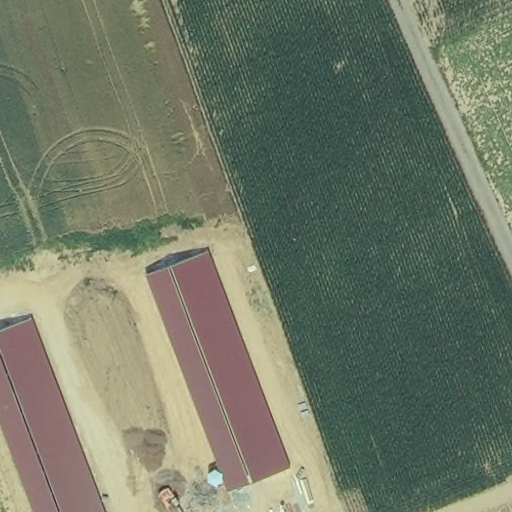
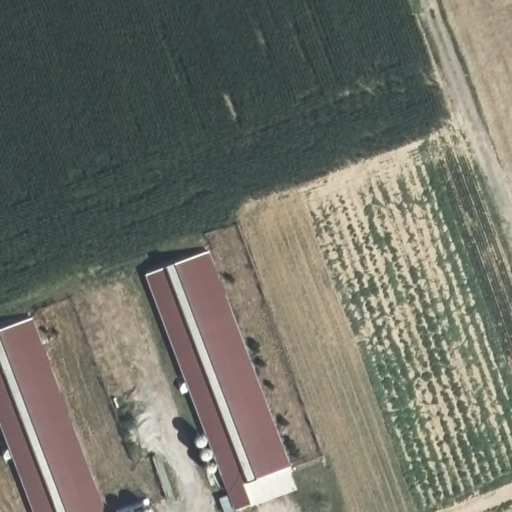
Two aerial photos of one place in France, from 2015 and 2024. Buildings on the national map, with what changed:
unchanged [(146,274),(208,251),(290,468),(228,490),(146,274)]
unchanged [(33,318),(105,512),(35,512),(0,420),(0,330),(33,318)]

